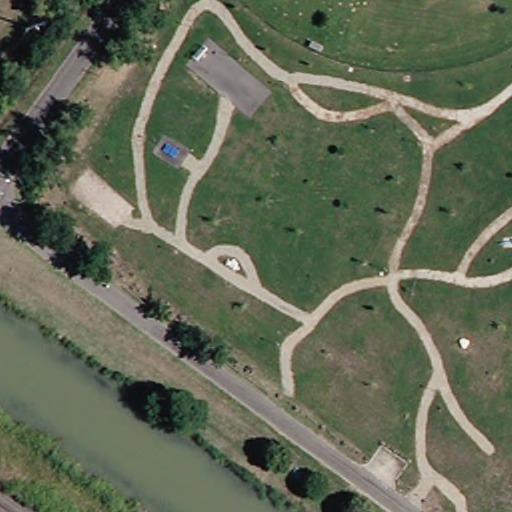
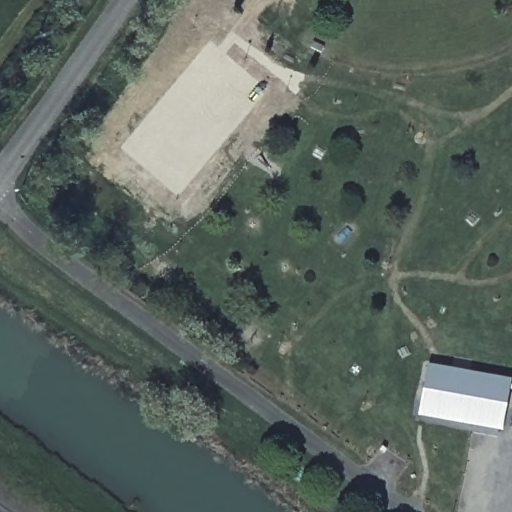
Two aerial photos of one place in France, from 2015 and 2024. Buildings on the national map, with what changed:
new [(512,381),(502,432),(419,417),(429,366),(512,381)]

